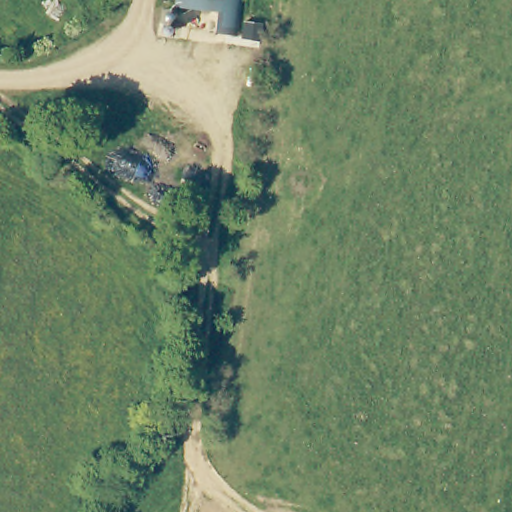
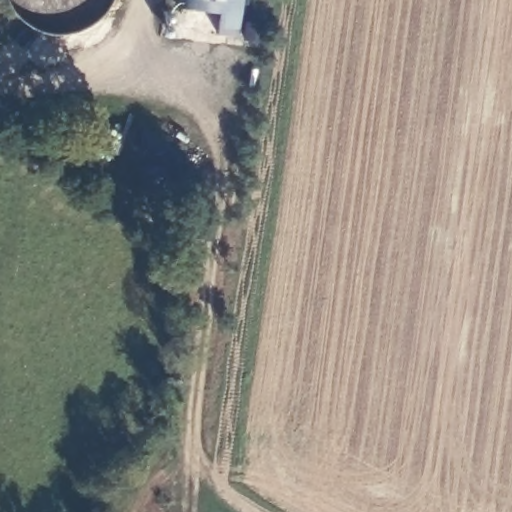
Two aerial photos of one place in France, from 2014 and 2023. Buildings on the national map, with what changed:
unchanged [(179,9),(180,0),(248,0),(246,16),(179,9)]
unchanged [(161,8),(179,9),(178,26),(160,25),(161,8)]

